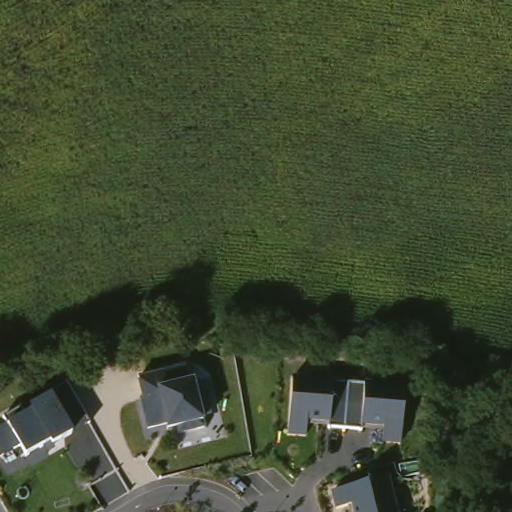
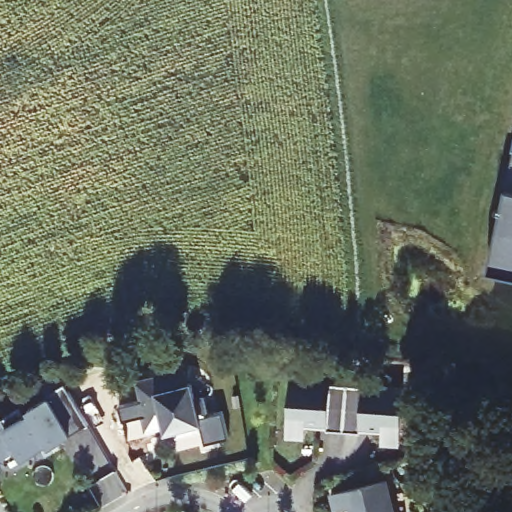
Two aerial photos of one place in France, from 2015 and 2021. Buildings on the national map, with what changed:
new [(488,268),(512,158),(512,273),(488,268)]
unchanged [(183,370),(187,382),(192,381),(204,426),(179,437),(178,429),(164,432),(162,427),(144,430),(136,381),(183,370)]
unchanged [(403,386),(399,445),(380,445),(381,429),(306,425),(303,441),(284,438),(289,380),(403,386)]
unchanged [(0,420),(19,411),(22,417),(29,413),(27,408),(46,398),(62,390),(86,425),(71,432),(49,447),(46,442),(23,457),(16,448),(0,459),(0,429),(4,426),(0,420)]
unchanged [(387,481),(396,512),(349,512),(348,508),(330,511),(328,495),(387,481)]

